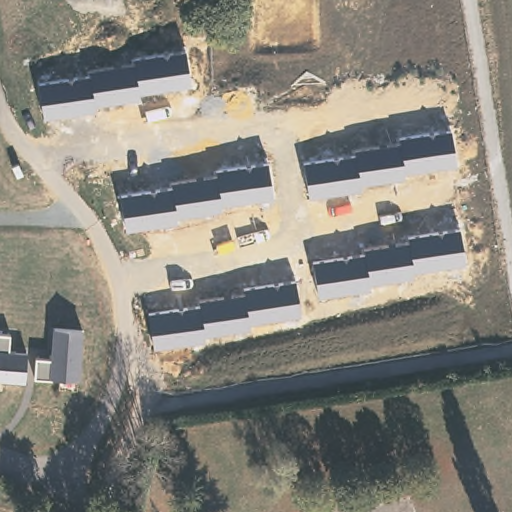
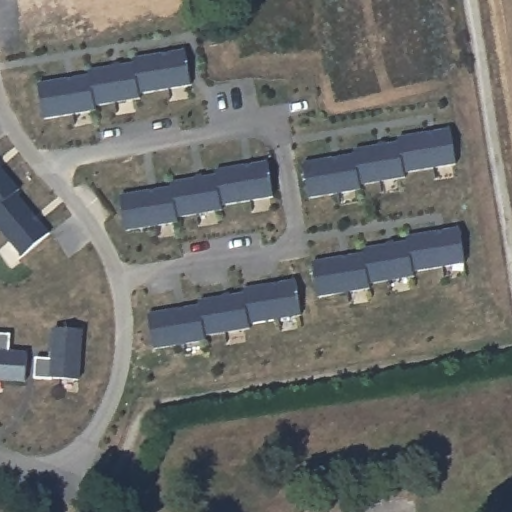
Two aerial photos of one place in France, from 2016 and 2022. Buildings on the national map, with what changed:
unchanged [(140,95),(140,100),(98,106),(97,112),(46,120),(41,83),(93,75),(92,71),(136,66),(136,59),(187,52),(190,86),(140,95)]
unchanged [(455,167),(404,174),(405,180),(361,186),(362,192),(309,199),(305,162),(357,156),(358,150),(401,145),(400,139),(450,131),(455,167)]
unchanged [(223,207),(224,214),(179,220),(180,225),(126,231),(123,195),(175,187),(174,182),(218,176),(217,171),(268,162),(273,197),(223,207)]
new [(16,192),(50,232),(21,256),(0,230),(0,165),(19,189),(16,192)]
unchanged [(465,266),(415,273),(416,279),(371,287),(372,292),(320,297),(315,262),(365,255),(365,248),(411,241),(410,235),(460,229),(465,266)]
unchanged [(301,317),(250,326),(250,330),(206,337),(206,342),(156,350),(150,313),(200,306),(200,301),(245,293),(244,287),(294,280),(301,317)]
unchanged [(39,356),(56,356),(58,326),(85,328),(81,378),(55,376),(55,377),(38,377),(39,356)]
unchanged [(13,350),(30,352),(28,379),(0,377),(0,331),(14,332),(13,350)]

